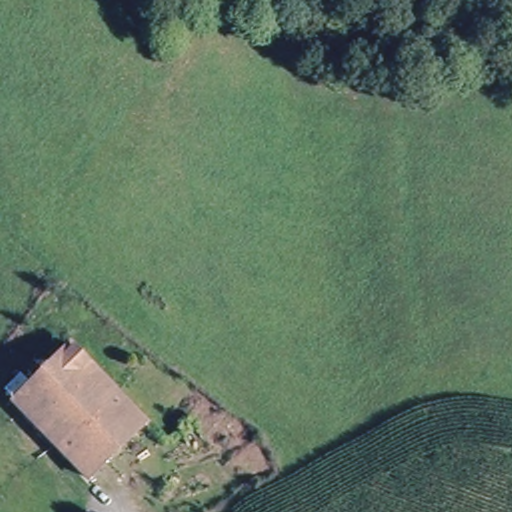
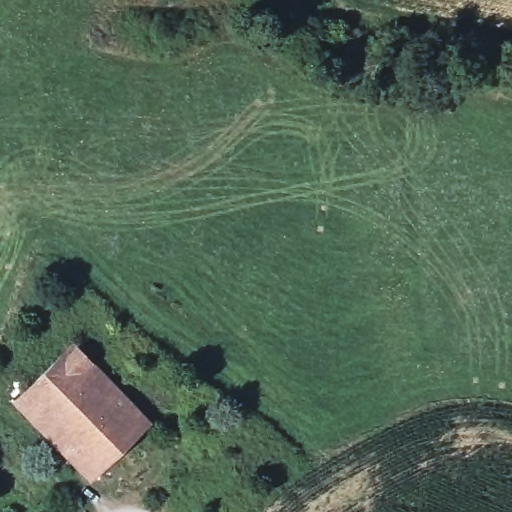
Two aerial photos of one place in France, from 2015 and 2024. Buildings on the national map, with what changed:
unchanged [(155,418),(97,479),(14,403),(70,343),(155,418)]

